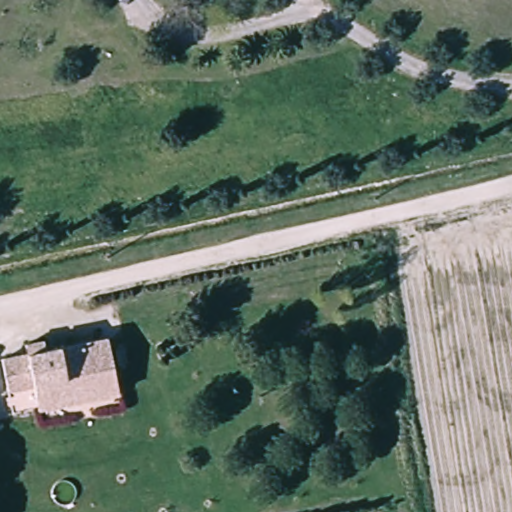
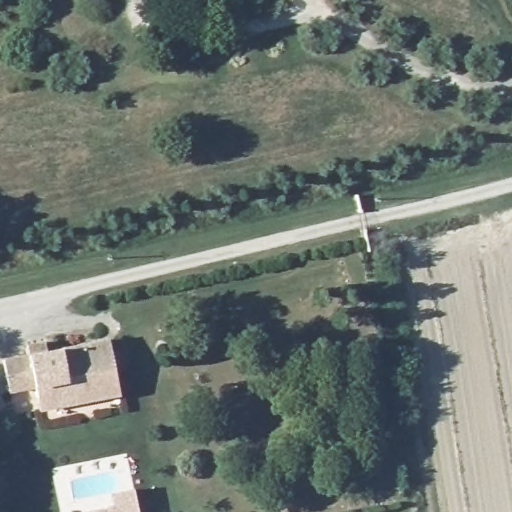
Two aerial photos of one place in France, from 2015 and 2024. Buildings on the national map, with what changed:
unchanged [(118,376),(39,395),(36,383),(11,390),(3,358),(29,352),(27,342),(45,338),(47,348),(108,333),(118,376)]
unchanged [(118,376),(121,388),(41,406),(39,395),(118,376)]
new [(112,506),(110,494),(133,488),(138,512),(85,512),(112,506)]

